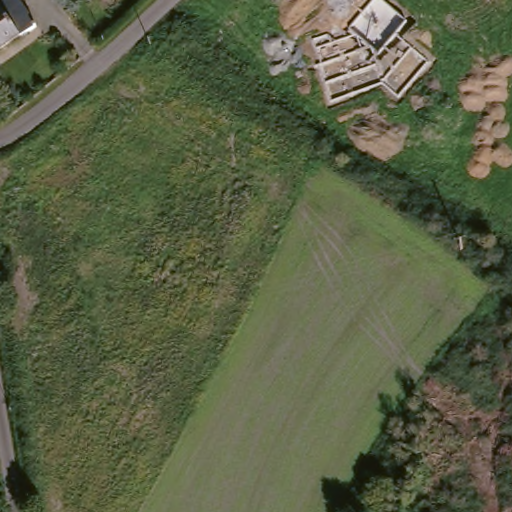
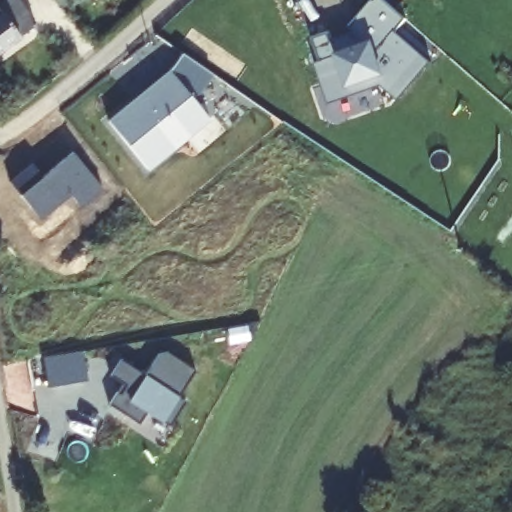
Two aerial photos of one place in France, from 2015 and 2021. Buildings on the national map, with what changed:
unchanged [(4,1),(13,13),(0,22),(0,0),(4,0),(4,1)]
unchanged [(45,21),(16,42),(0,54),(0,22),(13,13),(4,1),(6,0),(31,0),(45,21)]
new [(406,20),(395,32),(432,63),(398,101),(382,86),(353,95),(354,96),(329,105),(314,64),(319,62),(310,38),(329,31),(332,39),(353,31),(349,28),(372,0),(383,0),(406,20)]
new [(214,75),(194,100),(210,121),(150,170),(107,120),(169,69),(171,72),(183,54),(214,75)]
new [(87,379),(47,387),(42,357),(82,350),(87,379)]
new [(145,375),(156,358),(160,355),(164,354),(170,354),(195,372),(179,397),(185,402),(170,427),(163,423),(147,413),(140,424),(109,405),(123,384),(110,376),(121,360),(145,375)]

